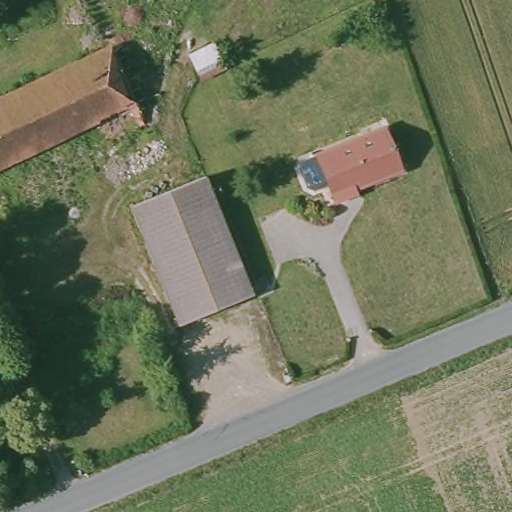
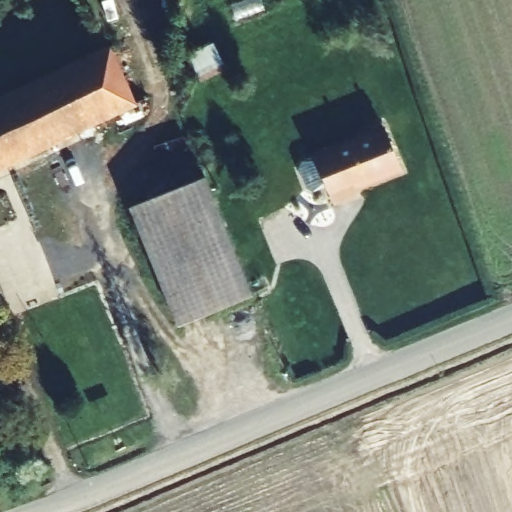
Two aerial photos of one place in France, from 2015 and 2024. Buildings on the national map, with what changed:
unchanged [(124,43),(148,98),(137,103),(141,112),(102,131),(97,121),(47,143),(67,195),(25,213),(12,180),(0,185),(0,96),(124,43)]
unchanged [(400,177),(355,197),(357,202),(334,210),(315,161),(385,136),(400,177)]
unchanged [(253,299),(180,331),(130,211),(205,181),(253,299)]
unchanged [(32,382),(45,378),(58,410),(45,417),(32,382)]
unchanged [(0,462),(0,438),(26,427),(47,480),(12,494),(0,462)]

